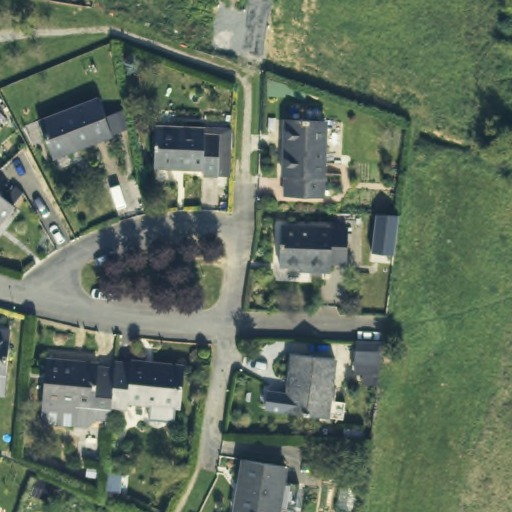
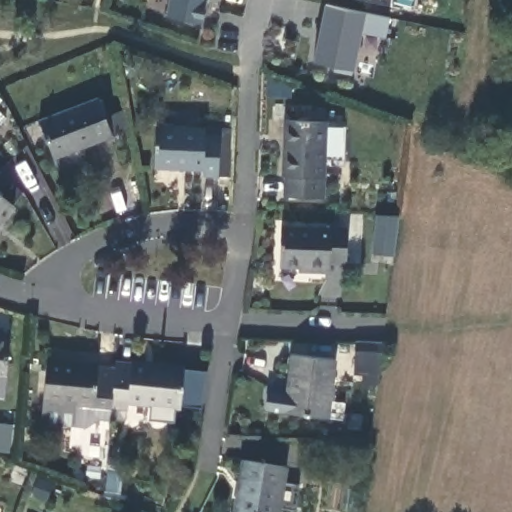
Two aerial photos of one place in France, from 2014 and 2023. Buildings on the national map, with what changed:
new [(169,0),(206,0),(201,23),(165,16),(169,0)]
new [(324,5),(388,16),(384,37),(359,33),(352,69),(314,62),(324,5)]
unchanged [(118,115),(124,130),(109,136),(110,138),(51,160),(36,122),(95,99),(103,121),(118,115)]
unchanged [(327,195),(290,193),(293,117),(331,120),(327,195)]
unchanged [(223,179),(209,177),(195,176),(195,171),(146,165),(151,122),(199,127),(228,130),(223,179)]
unchanged [(0,226),(0,195),(15,208),(0,226)]
unchanged [(348,226),(345,261),(327,260),(326,270),(309,268),(310,265),(277,263),(280,221),(348,226)]
unchanged [(13,332),(4,398),(0,397),(0,330),(13,332)]
unchanged [(355,364),(355,345),(382,346),(380,365),(355,364)]
unchanged [(327,420),(284,414),(291,355),(334,361),(327,420)]
unchanged [(96,420),(98,408),(80,406),(78,426),(44,423),(47,403),(45,402),(50,358),(101,364),(101,367),(118,369),(113,408),(112,421),(96,420)]
unchanged [(135,363),(135,361),(186,367),(181,408),(130,403),(129,410),(113,408),(118,369),(119,361),(135,363)]
unchanged [(235,512),(243,460),(282,466),(275,512),(235,512)]

